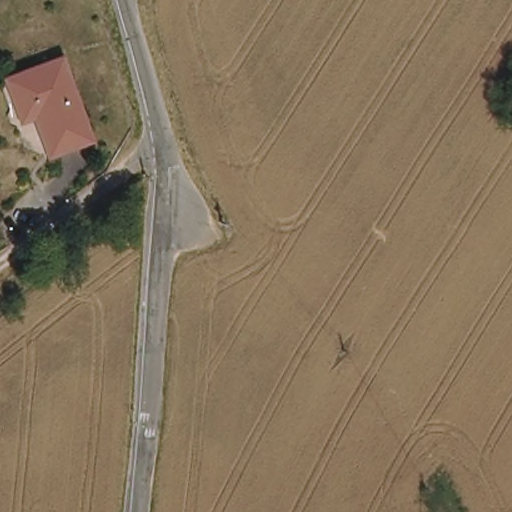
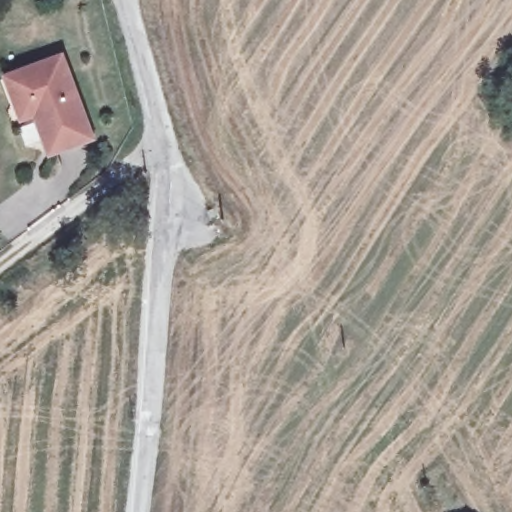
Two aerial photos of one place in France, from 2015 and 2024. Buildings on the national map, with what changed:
unchanged [(19,112),(9,79),(70,61),(97,142),(47,159),(35,120),(22,123),(19,112)]

